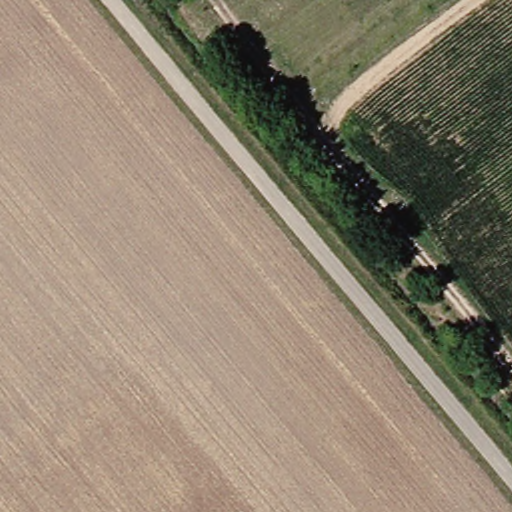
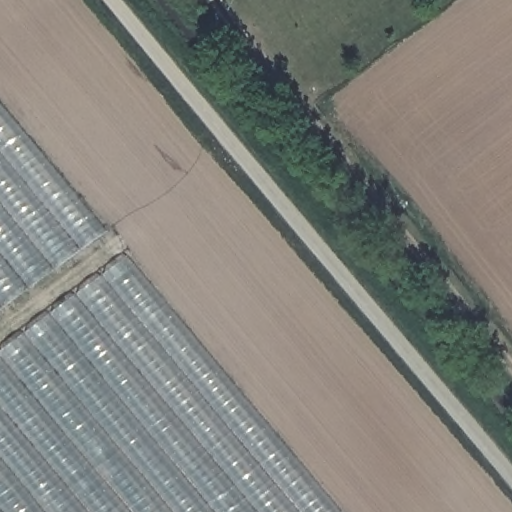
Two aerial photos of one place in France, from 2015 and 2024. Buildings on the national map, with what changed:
new [(0,300),(0,106),(104,227),(0,300)]
new [(0,512),(0,345),(127,254),(332,512),(0,512)]

